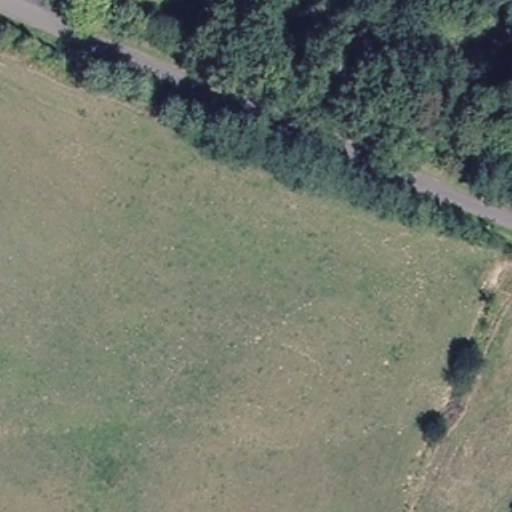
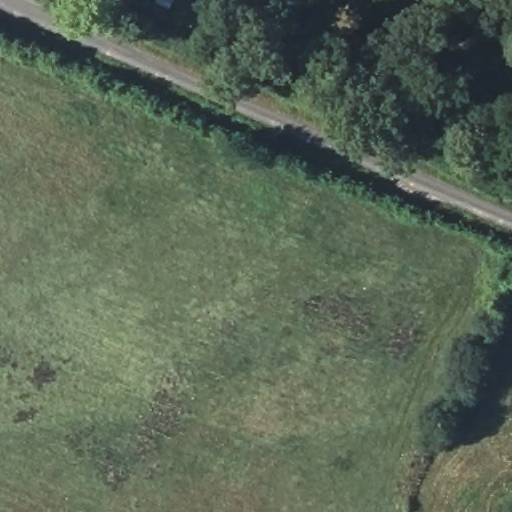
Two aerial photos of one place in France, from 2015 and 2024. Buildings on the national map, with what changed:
[]

